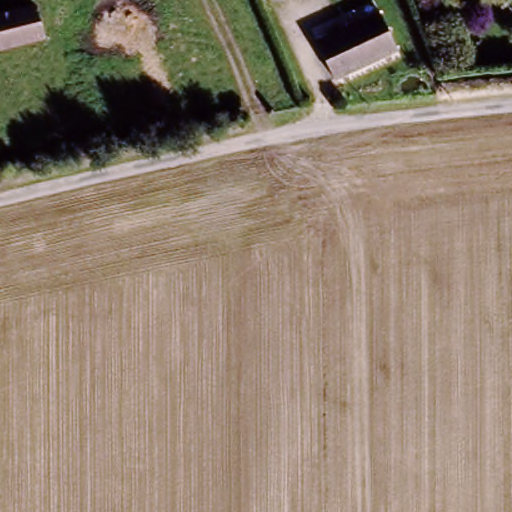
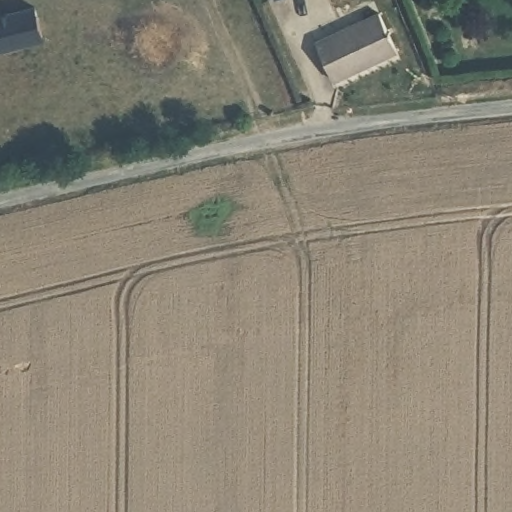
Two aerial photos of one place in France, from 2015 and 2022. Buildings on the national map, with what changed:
unchanged [(392,49),(330,75),(314,36),(375,10),(392,49)]
unchanged [(0,20),(32,11),(41,41),(0,52),(0,20)]

